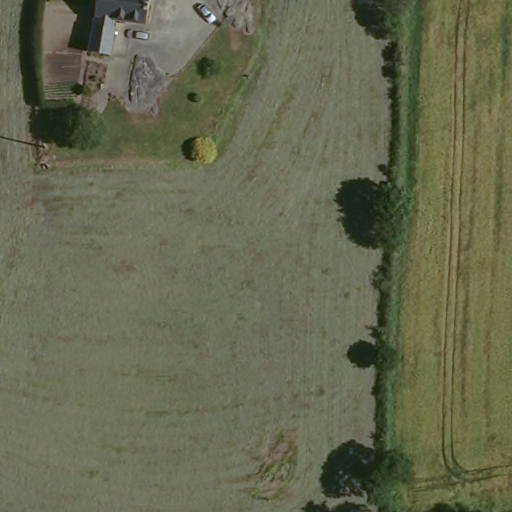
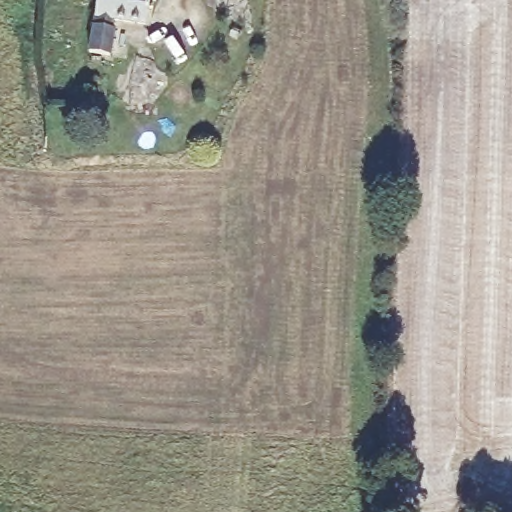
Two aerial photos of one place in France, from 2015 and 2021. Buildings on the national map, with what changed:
unchanged [(149,21),(118,17),(112,52),(92,49),(100,0),(153,0),(149,21)]

